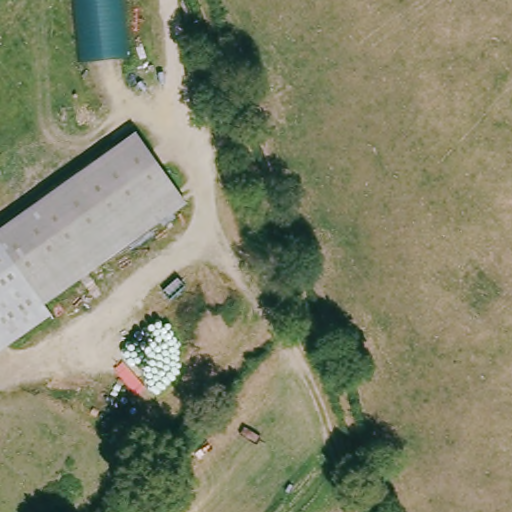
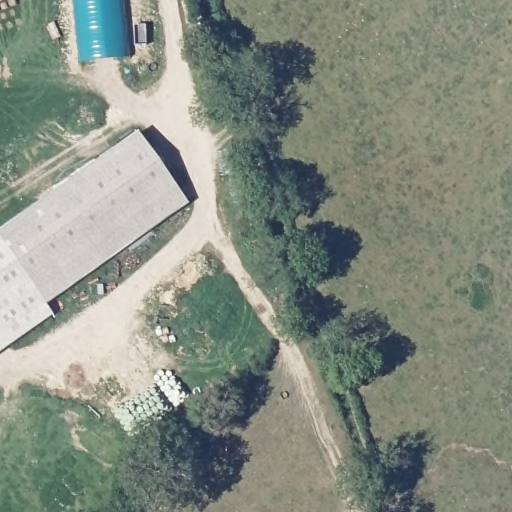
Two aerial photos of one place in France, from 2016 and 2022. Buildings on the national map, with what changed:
unchanged [(84,61),(77,0),(120,0),(127,57),(84,61)]
unchanged [(34,303),(40,313),(0,340),(0,224),(132,135),(181,203),(34,303)]

